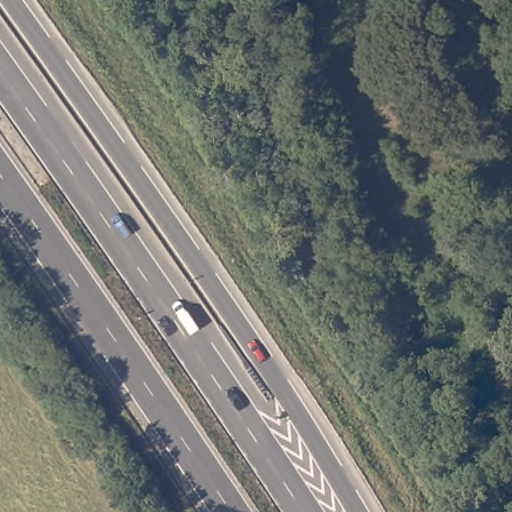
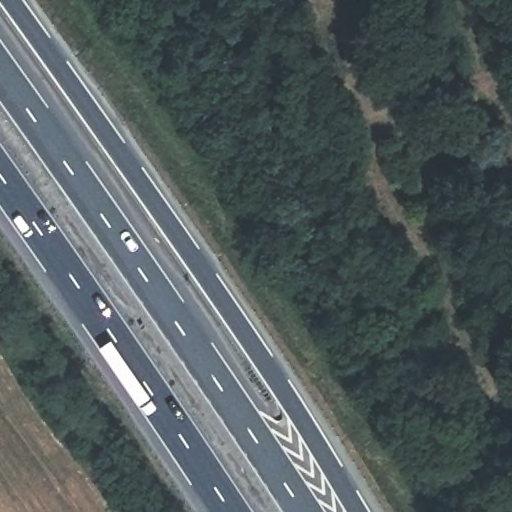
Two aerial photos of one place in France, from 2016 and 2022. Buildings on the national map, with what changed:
[]

